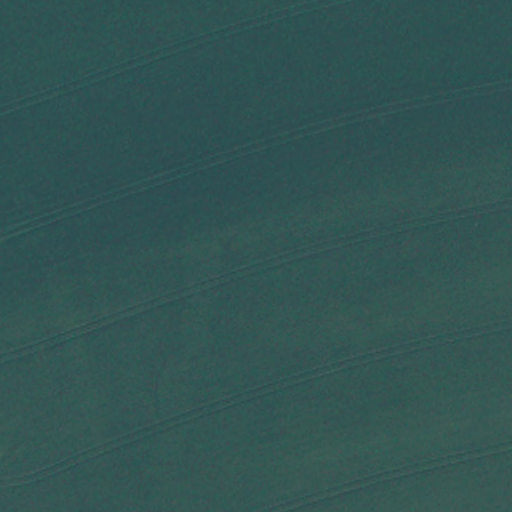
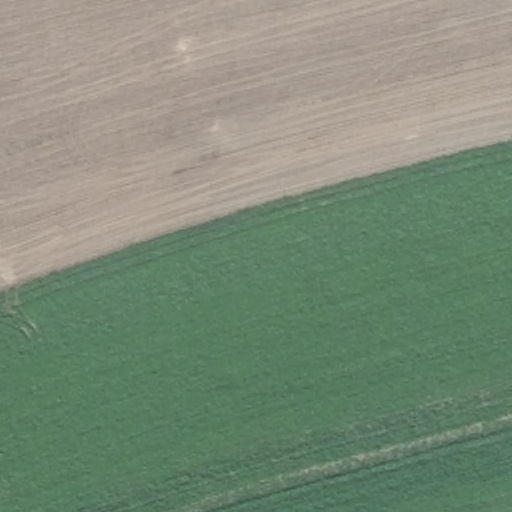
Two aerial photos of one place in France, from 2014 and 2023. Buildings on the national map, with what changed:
[]

